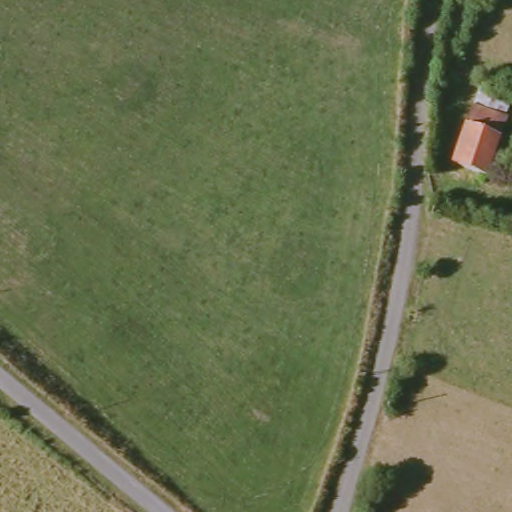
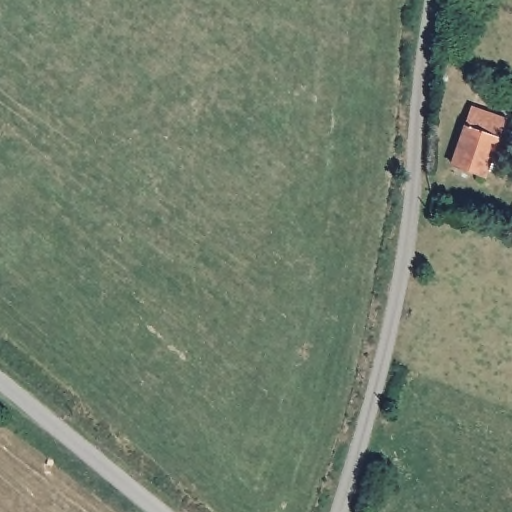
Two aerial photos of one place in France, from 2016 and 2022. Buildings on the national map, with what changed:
unchanged [(461,34),(445,29),(453,0),(455,0),(469,3),(461,34)]
unchanged [(507,114),(484,171),(453,159),(473,102),(507,114)]

